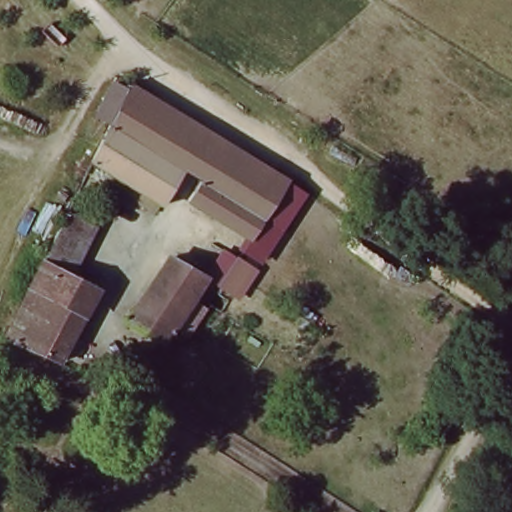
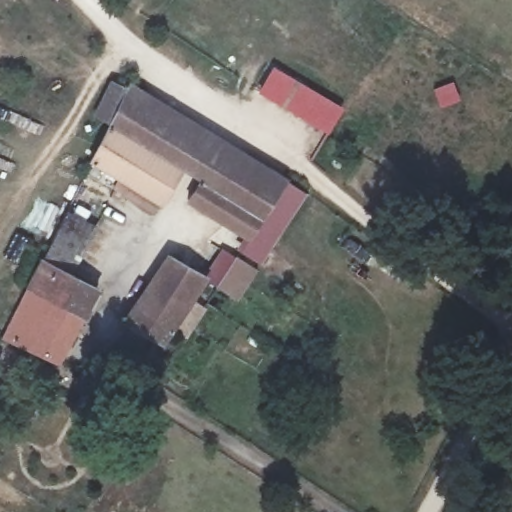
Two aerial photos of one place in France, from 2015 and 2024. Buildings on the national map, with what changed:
new [(273,67),(342,108),(328,132),(260,93),(273,67)]
unchanged [(182,166),(109,121),(129,81),(223,140),(285,179),(263,215),(202,178),(182,166)]
unchanged [(159,205),(89,161),(109,121),(182,166),(159,205)]
unchanged [(263,215),(250,237),(189,199),(202,178),(263,215)]
unchanged [(42,356),(2,335),(64,212),(93,227),(68,275),(95,289),(58,364),(42,356)]
unchanged [(174,329),(161,347),(160,346),(124,321),(166,253),(218,286),(186,336),(174,329)]
unchanged [(254,269),(237,298),(218,286),(234,256),(254,269)]

